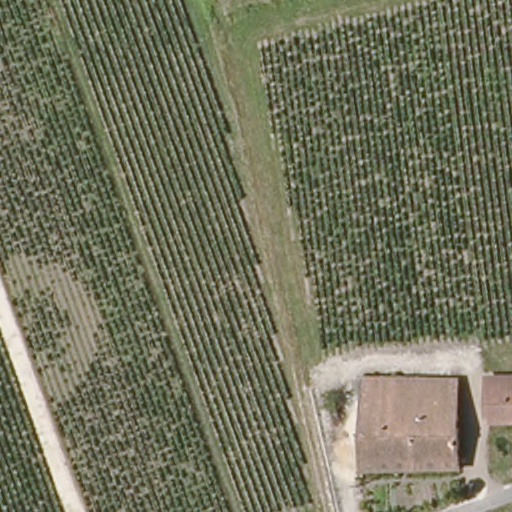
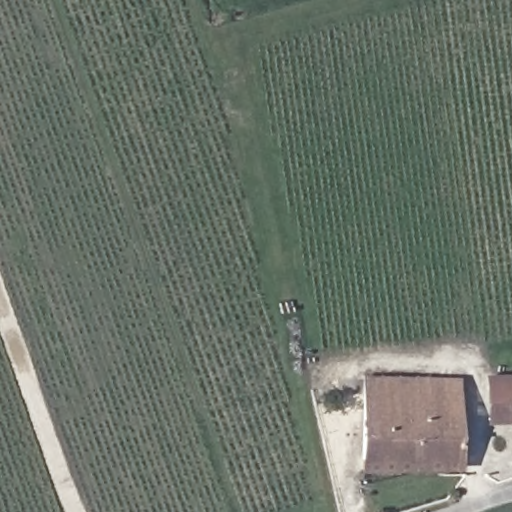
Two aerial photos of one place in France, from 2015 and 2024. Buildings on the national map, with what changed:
unchanged [(362,461),(362,377),(461,375),(461,457),(362,461)]
unchanged [(490,380),(506,380),(512,379),(512,422),(511,422),(491,422),(490,380)]
unchanged [(461,457),(460,469),(362,473),(362,461),(461,457)]

